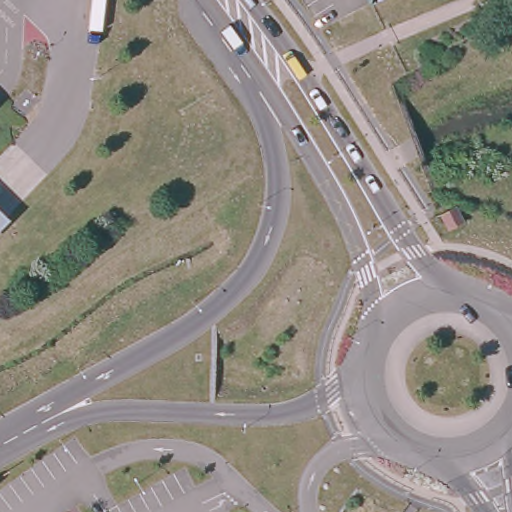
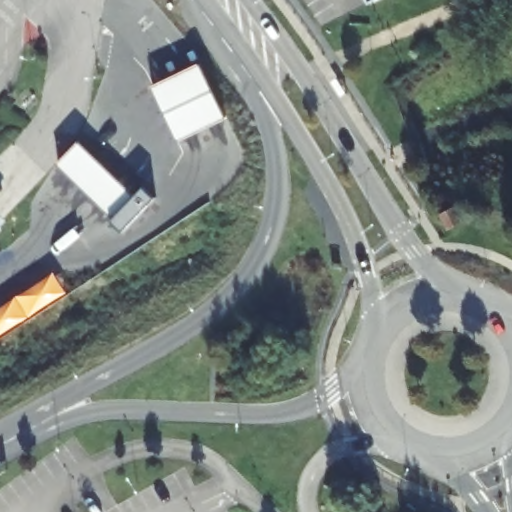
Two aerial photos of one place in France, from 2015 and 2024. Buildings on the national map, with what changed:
new [(227,118),(180,140),(153,86),(201,62),(227,118)]
new [(80,136),(135,189),(142,182),(153,193),(116,235),(113,232),(110,237),(100,228),(104,223),(50,171),(80,136)]
unchanged [(456,205),(463,222),(449,229),(441,214),(456,205)]
unchanged [(0,221),(0,207),(7,214),(0,221)]

